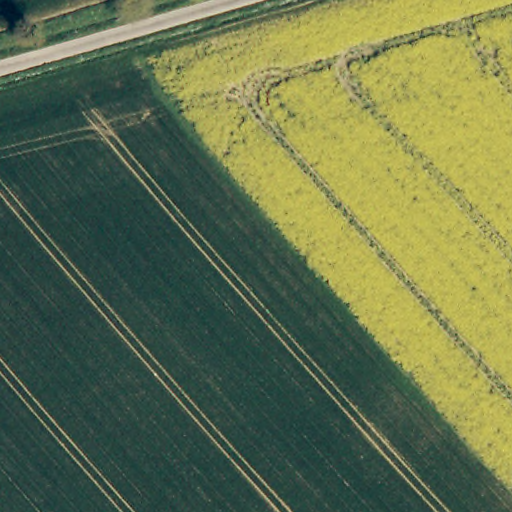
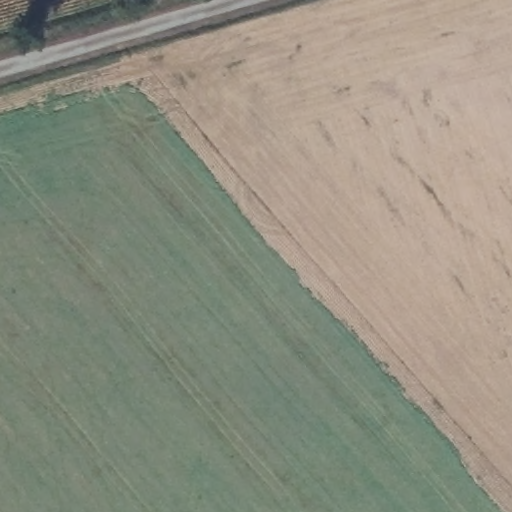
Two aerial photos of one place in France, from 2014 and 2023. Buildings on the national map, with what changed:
[]

